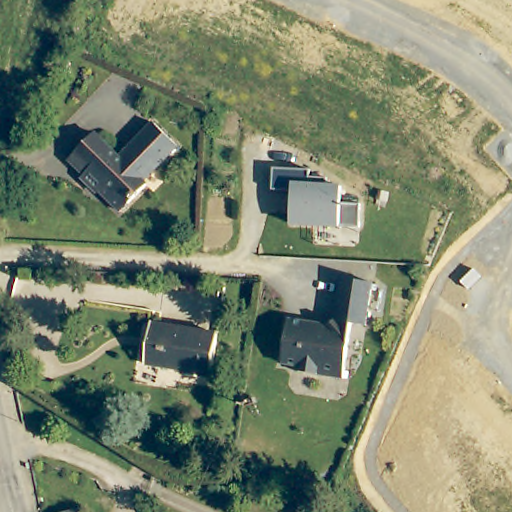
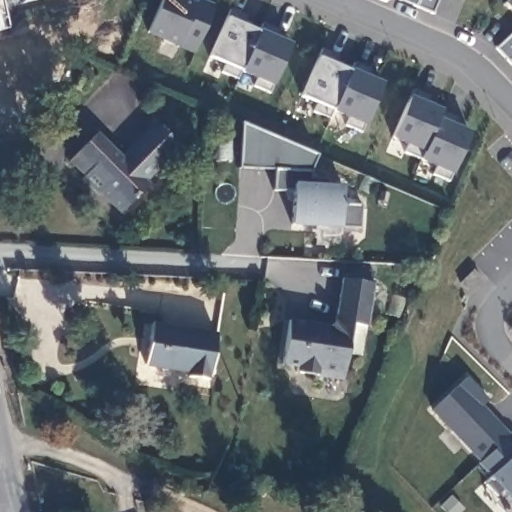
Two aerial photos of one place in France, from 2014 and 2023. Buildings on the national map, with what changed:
new [(162,0),(192,0),(197,2),(198,0),(206,0),(215,4),(195,52),(148,32),(162,0)]
new [(435,11),(401,0),(439,0),(435,11)]
new [(505,6),(511,0),(512,0),(512,14),(505,6)]
new [(273,84),(210,56),(228,17),(291,41),(273,84)]
new [(499,49),(512,36),(512,64),(499,49)]
new [(367,124),(303,95),(320,57),(383,83),(367,124)]
new [(392,140),(410,95),(442,109),(440,119),(426,150),(392,140)]
new [(454,174),(421,161),(426,150),(440,119),(470,131),(454,174)]
new [(241,121),(318,155),(312,169),(241,169),(241,121)]
unchanged [(180,152),(143,185),(146,189),(127,207),(107,185),(96,195),(81,179),(85,176),(70,160),(97,135),(121,161),(157,128),(180,152)]
unchanged [(295,193),(275,191),(276,170),(314,172),(313,180),(330,181),(330,189),(345,190),(344,205),(364,206),(362,230),(293,226),(295,193)]
unchanged [(373,284),(366,327),(352,325),(342,379),(296,371),(296,365),(282,363),(290,318),(330,325),(336,320),(343,279),(373,284)]
unchanged [(220,330),(215,373),(210,372),(209,380),(185,377),(186,370),(145,365),(150,323),(220,330)]
new [(506,436),(481,460),(434,410),(468,376),(490,399),(485,405),(511,431),(506,436)]
new [(512,442),(512,496),(505,489),(500,495),(486,480),(495,473),(481,460),(506,436),(512,442)]

